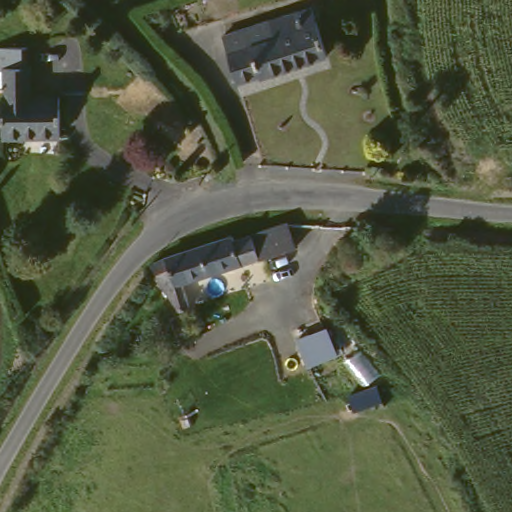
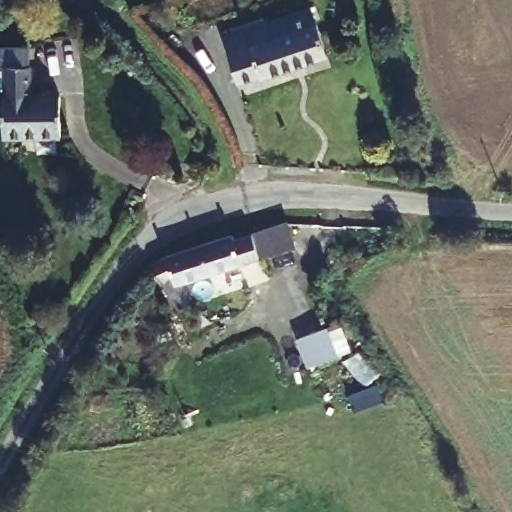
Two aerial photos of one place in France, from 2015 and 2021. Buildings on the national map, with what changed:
unchanged [(303,18),(306,31),(321,29),(330,63),(259,78),(258,73),(231,79),(221,35),(303,18)]
unchanged [(24,68),(26,68),(25,98),(46,99),(44,139),(0,137),(0,48),(24,49),(24,68)]
unchanged [(284,215),(292,249),(266,255),(254,258),(253,253),(238,257),(241,268),(220,271),(221,262),(171,273),(181,291),(168,296),(145,260),(153,256),(152,250),(264,221),(284,215)]
unchanged [(334,332),(342,361),(312,368),(305,340),(334,332)]

